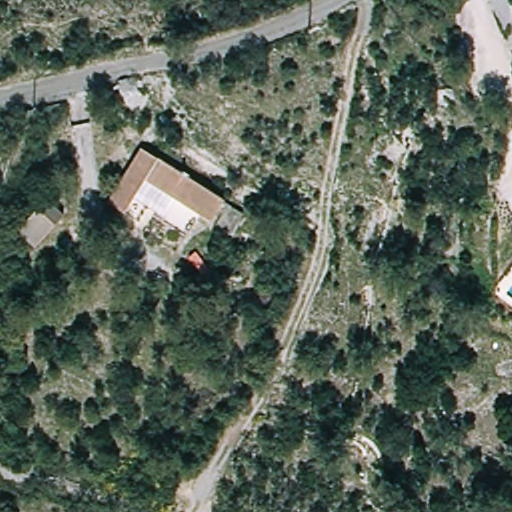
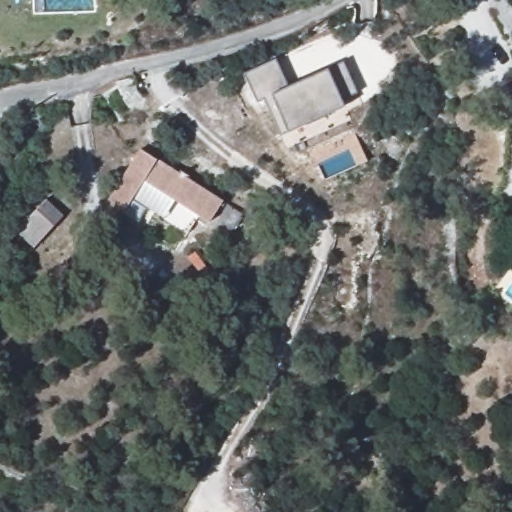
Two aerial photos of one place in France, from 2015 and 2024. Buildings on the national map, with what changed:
new [(289,86),(328,67),(329,69),(343,62),(357,93),(343,102),(346,107),(289,132),(281,136),(265,99),(258,102),(244,73),(276,59),(289,86)]
unchanged [(103,197),(139,143),(169,163),(173,159),(188,169),(185,173),(236,208),(220,232),(209,225),(218,213),(209,207),(201,219),(191,212),(137,176),(116,206),(103,197)]
unchanged [(137,176),(191,212),(184,222),(142,195),(129,215),(116,206),(137,176)]
unchanged [(42,199),(60,215),(30,249),(13,232),(42,199)]
unchanged [(184,258),(191,252),(206,270),(198,276),(184,258)]

